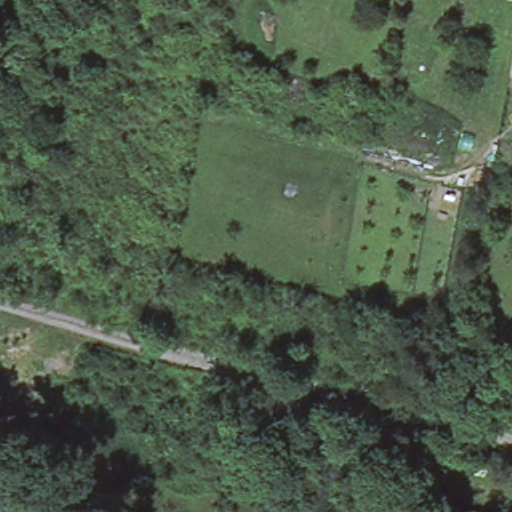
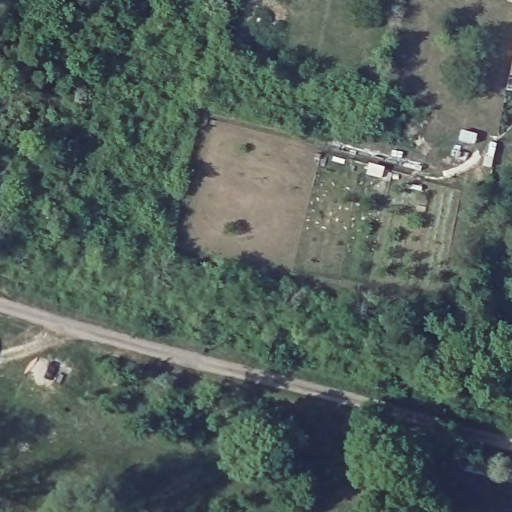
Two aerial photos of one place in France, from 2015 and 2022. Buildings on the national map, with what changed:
unchanged [(512,75),(507,73),(510,53),(512,43),(512,75)]
unchanged [(445,283),(463,288),(460,305),(441,301),(445,283)]

